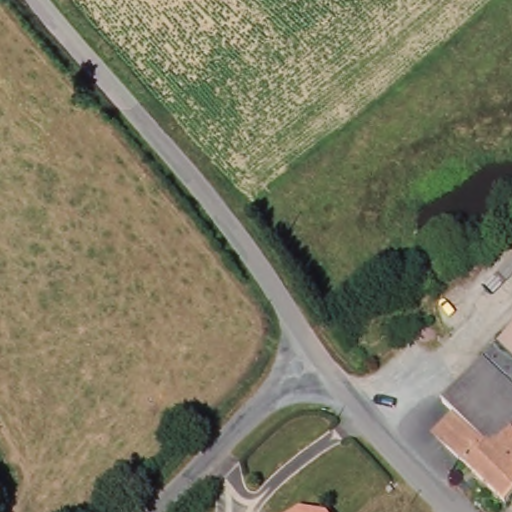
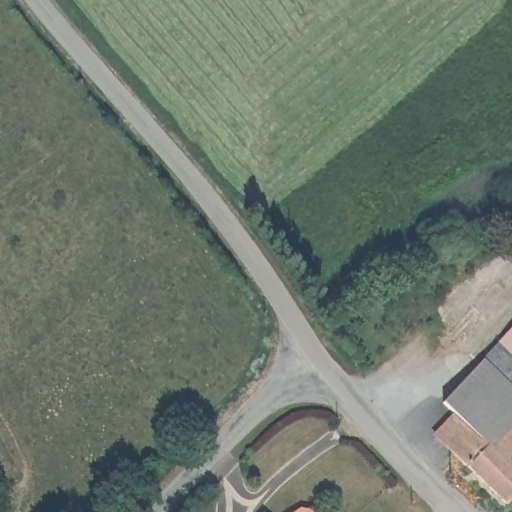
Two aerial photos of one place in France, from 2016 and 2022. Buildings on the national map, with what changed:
unchanged [(507,506),(447,448),(424,425),(443,405),(512,331),(512,501),(507,506)]

